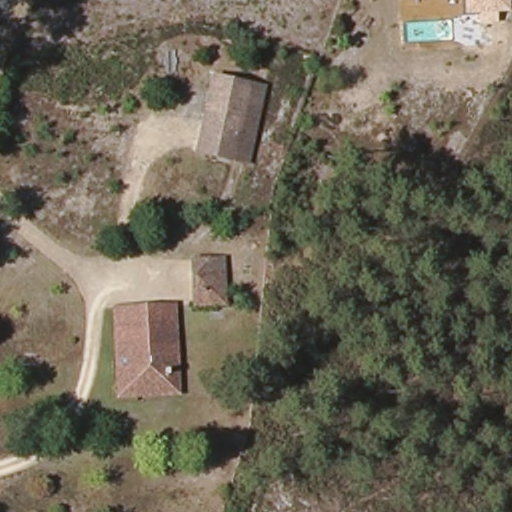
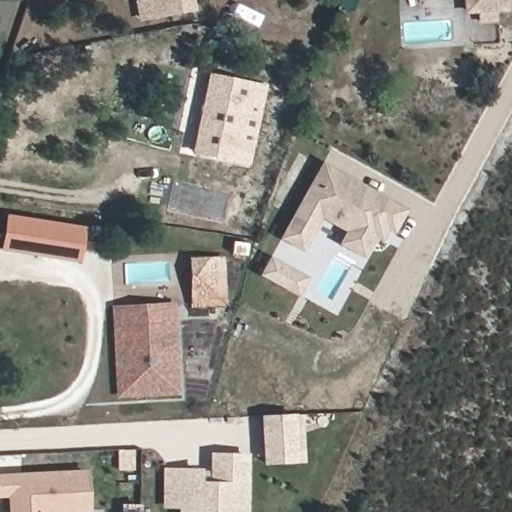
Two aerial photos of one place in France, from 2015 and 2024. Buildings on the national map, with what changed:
unchanged [(464,14),(464,0),(509,0),(510,11),(464,14)]
unchanged [(236,162),(196,155),(211,79),(249,86),(236,162)]
new [(335,245),(342,232),(321,221),(302,251),(277,238),(321,161),(408,209),(394,233),(387,229),(381,241),(375,238),(363,259),(357,255),(335,245)]
new [(85,227),(79,262),(1,250),(6,215),(85,227)]
new [(305,276),(293,296),(260,277),(272,257),(305,276)]
unchanged [(190,294),(188,263),(216,262),(219,305),(200,306),(191,307),(190,294)]
unchanged [(162,308),(177,308),(182,395),(124,397),(119,311),(137,310),(162,308)]
new [(261,452),(264,448),(261,448),(260,416),(296,414),(298,463),(262,464),(261,452)]
new [(176,472),(193,472),(207,472),(207,456),(240,457),(239,508),(239,512),(175,512),(176,472)]
new [(87,468),(88,512),(5,512),(5,497),(0,497),(0,473),(87,468)]

